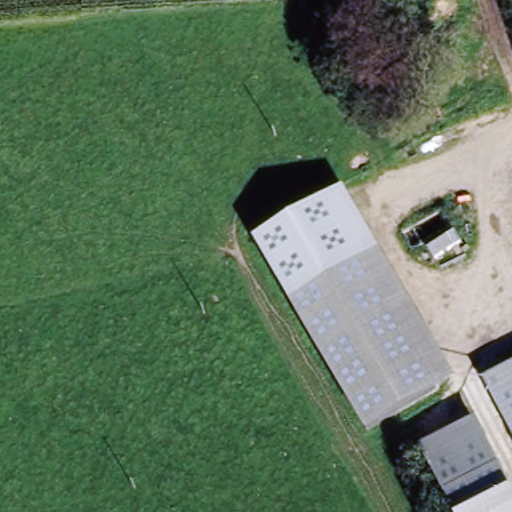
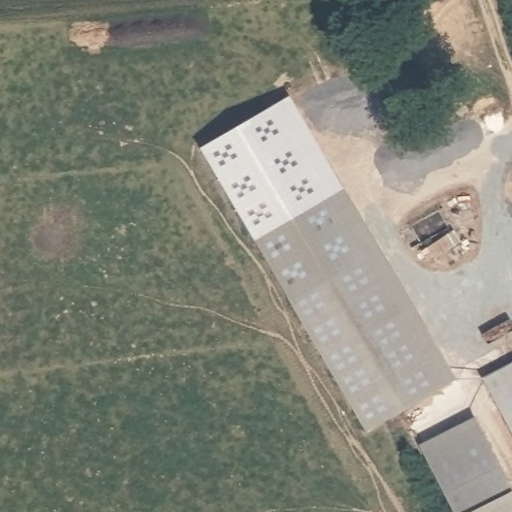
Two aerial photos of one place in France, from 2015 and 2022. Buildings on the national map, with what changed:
new [(253,237),(199,150),(289,98),(342,186),(253,237)]
unchanged [(342,186),(379,247),(290,297),(253,237),(342,186)]
unchanged [(458,377),(367,431),(290,297),(379,247),(458,377)]
unchanged [(512,360),(512,432),(485,373),(512,360)]
unchanged [(512,512),(449,512),(416,446),(472,417),(512,497),(512,512)]

